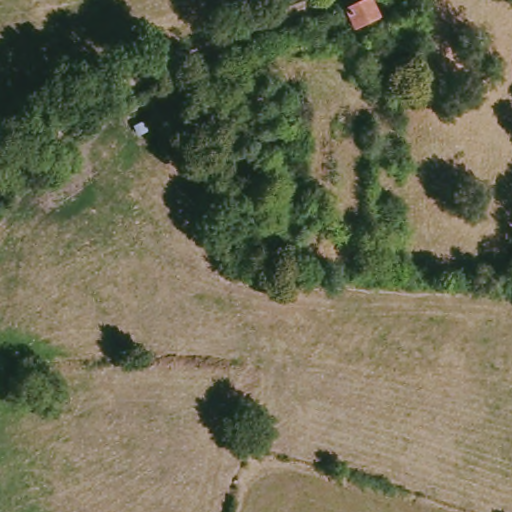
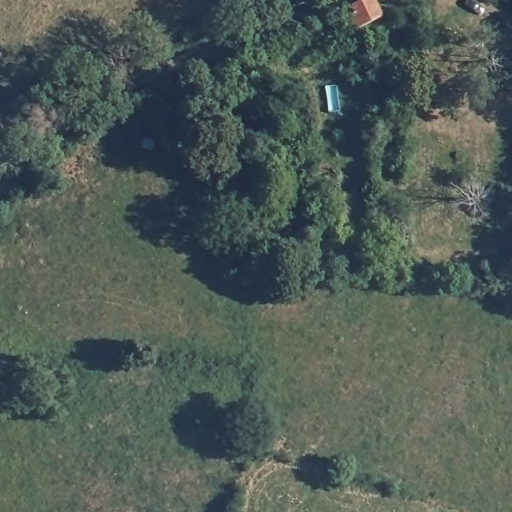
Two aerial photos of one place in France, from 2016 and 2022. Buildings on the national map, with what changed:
unchanged [(361,32),(357,24),(349,28),(345,27),(342,25),(338,14),(369,0),(370,0),(373,0),(383,23),(361,32)]

